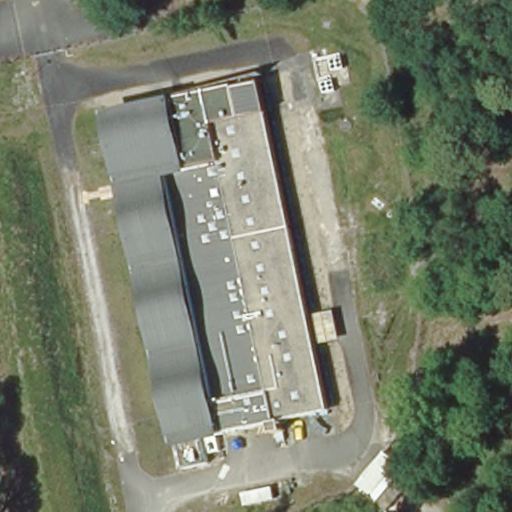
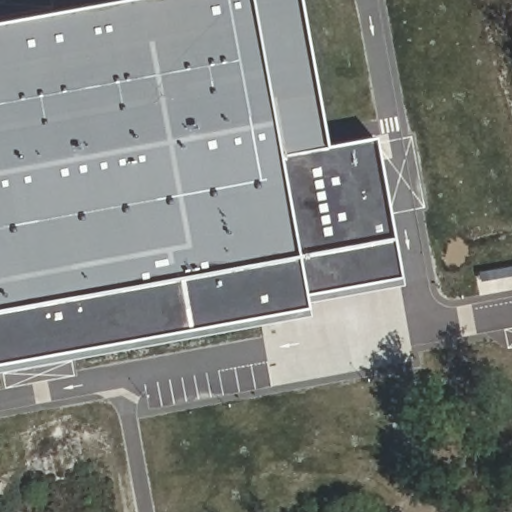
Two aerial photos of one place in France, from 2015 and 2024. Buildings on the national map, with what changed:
new [(144,0),(307,0),(333,150),(382,142),(413,287),(317,303),(320,321),(0,380),(0,30),(145,5),(144,0)]
demolished [(263,109),(342,434),(192,470),(114,146),(263,109)]
demolished [(97,512),(40,512),(0,315),(0,172),(26,166),(97,512)]
demolished [(383,456),(394,466),(401,473),(389,485),(402,498),(387,512),(385,512),(370,495),(357,481),(383,456)]

